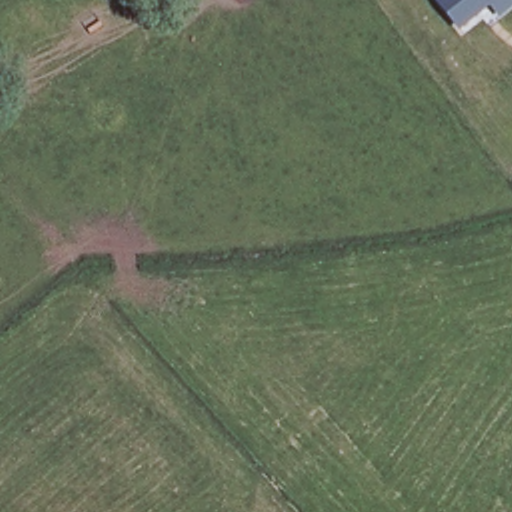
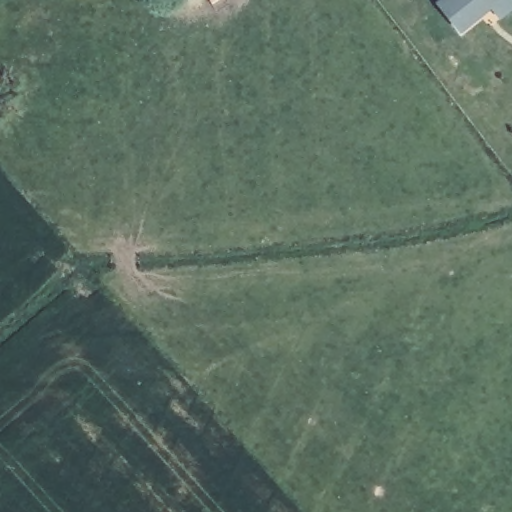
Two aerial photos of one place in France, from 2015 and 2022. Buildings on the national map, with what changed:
unchanged [(501,18),(490,5),(459,29),(435,0),(512,0),(512,9),(501,18)]

